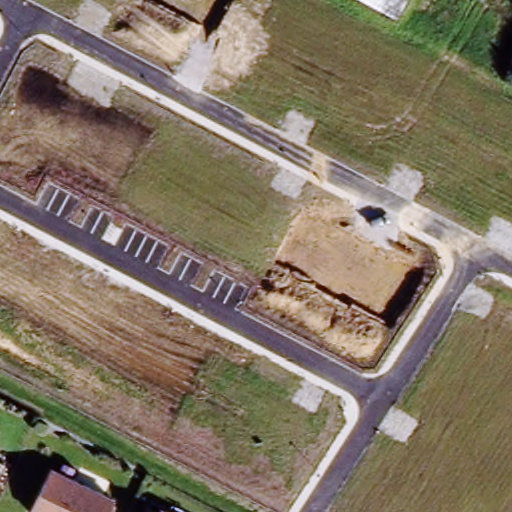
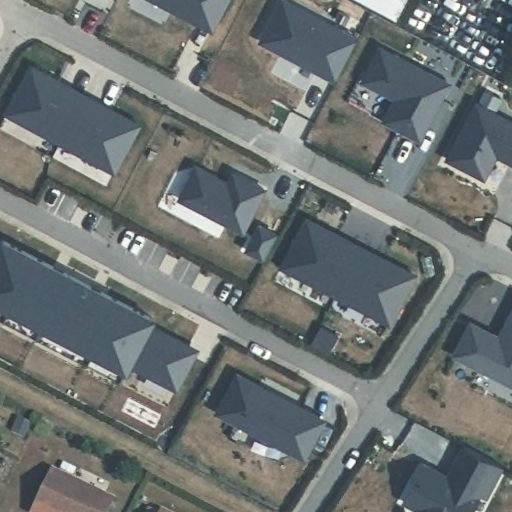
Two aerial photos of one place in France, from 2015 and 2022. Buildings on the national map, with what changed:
new [(177,9),(177,7),(171,3),(169,6),(158,0),(231,0),(220,22),(216,29),(202,22),(177,9)]
new [(286,1),(361,40),(341,77),(328,71),(327,74),(298,59),(300,56),(266,39),(286,1)]
new [(384,49),(451,85),(443,100),(440,99),(419,138),(387,122),(399,99),(367,82),(384,49)]
new [(33,68),(62,83),(61,86),(112,113),(113,110),(142,125),(118,171),(82,152),(81,153),(45,134),(46,132),(9,113),(33,68)]
new [(481,105),(512,122),(512,160),(501,154),(487,179),(451,159),(481,105)]
new [(194,167),(227,184),(234,174),(265,190),(242,232),(177,199),(194,167)]
new [(356,301),(355,303),(319,284),(321,281),(285,262),(310,217),(340,233),(338,236),(385,261),(386,258),(416,274),(392,320),(356,301)]
new [(157,318),(155,325),(200,347),(177,391),(130,367),(127,373),(122,371),(120,381),(0,319),(0,240),(2,237),(157,318)]
new [(496,339),(497,335),(502,338),(503,333),(512,317),(512,380),(483,366),(482,368),(456,355),(471,326),(496,339)]
new [(329,349),(311,340),(320,324),(337,333),(329,349)]
new [(259,385),(282,397),(323,419),(306,454),(286,444),(284,447),(236,422),(237,419),(220,410),(238,374),(259,385)]
new [(447,475),(452,466),(463,444),(503,465),(486,496),(480,493),(469,512),(426,512),(404,500),(424,463),(447,475)]
unchanged [(49,471),(112,500),(106,512),(30,512),(49,471)]

